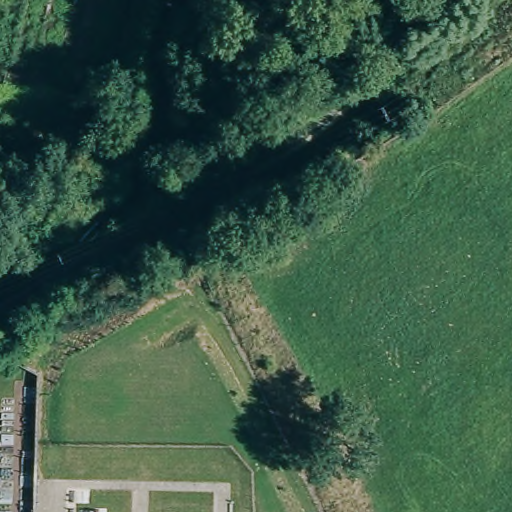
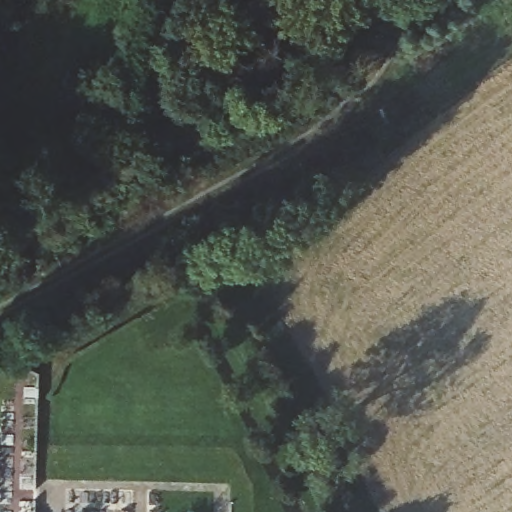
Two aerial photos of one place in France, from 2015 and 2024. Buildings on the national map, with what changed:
[]

